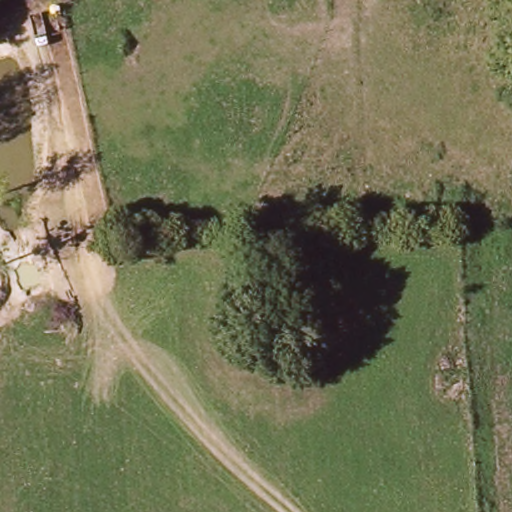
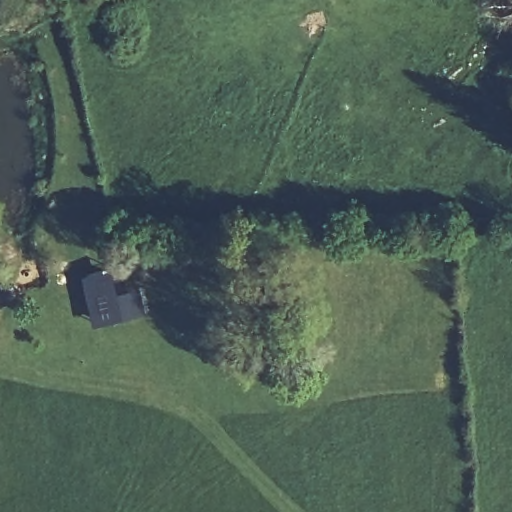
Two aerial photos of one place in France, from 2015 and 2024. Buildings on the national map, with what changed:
new [(83,276),(113,268),(119,293),(141,287),(148,312),(95,326),(83,276)]

